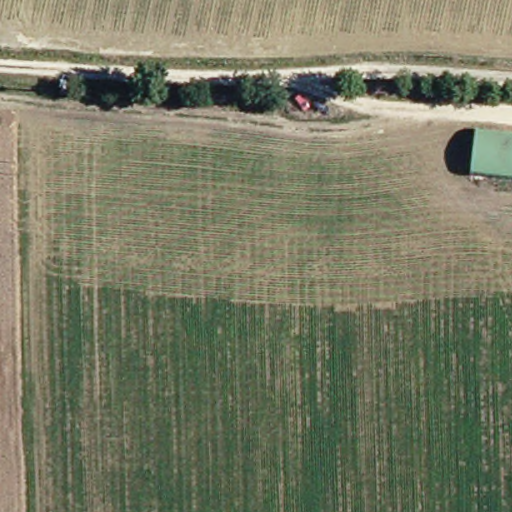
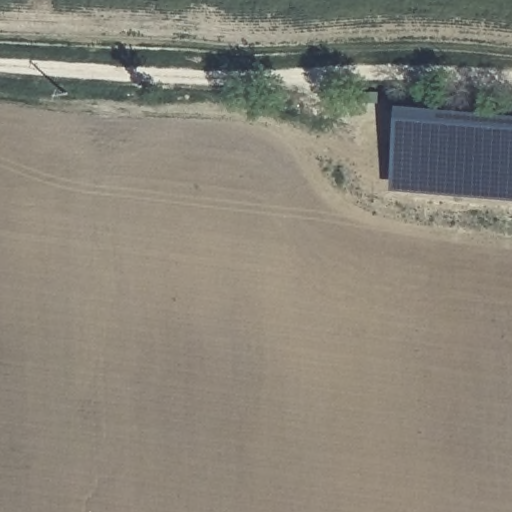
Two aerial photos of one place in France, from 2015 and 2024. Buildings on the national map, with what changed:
new [(401,105),(512,115),(512,200),(395,190),(401,105)]
demolished [(512,179),(471,175),(475,131),(512,135),(512,179)]

